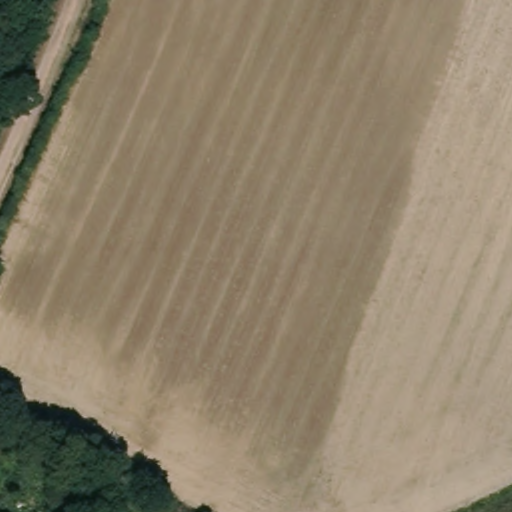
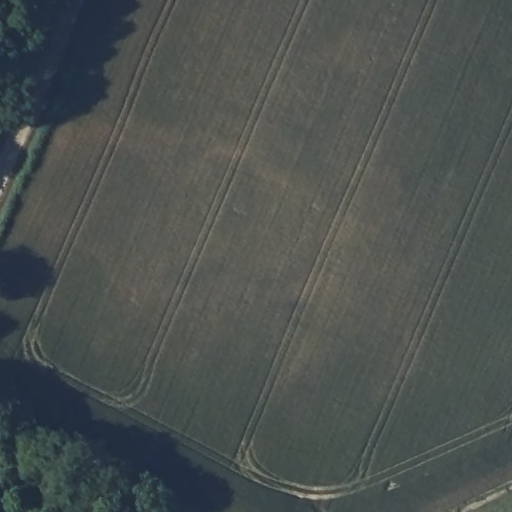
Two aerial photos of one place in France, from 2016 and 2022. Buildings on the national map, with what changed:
[]

